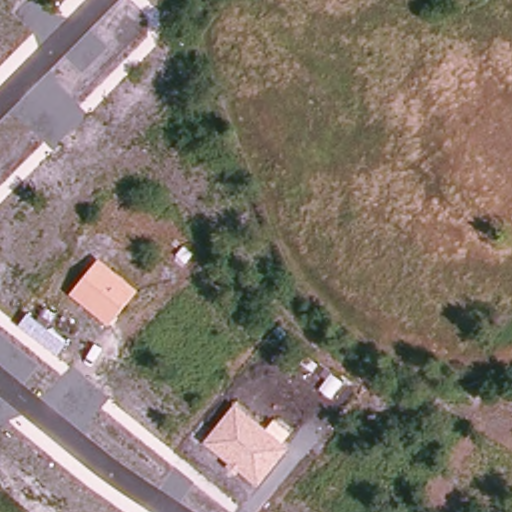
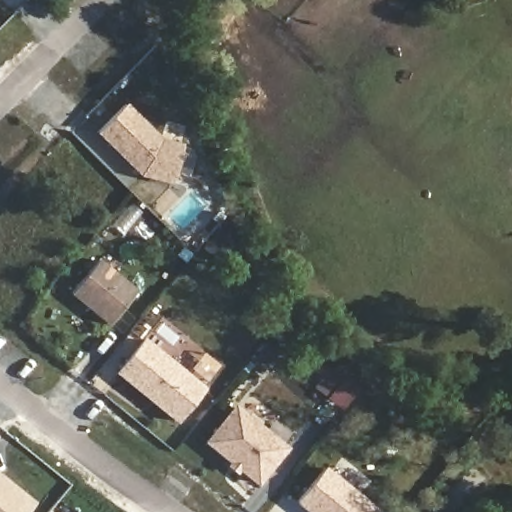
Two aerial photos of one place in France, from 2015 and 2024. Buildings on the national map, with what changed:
new [(120,106),(156,141),(177,148),(166,185),(135,178),(93,134),(120,106)]
unchanged [(109,326),(70,295),(99,259),(138,291),(109,326)]
new [(143,341),(202,389),(176,422),(156,406),(159,403),(135,384),(133,387),(116,373),(143,341)]
unchanged [(258,487),(204,443),(235,404),(290,449),(258,487)]
new [(322,469),(376,512),(308,512),(295,502),(322,469)]
new [(8,486),(33,505),(27,512),(0,512),(0,485),(5,490),(8,486)]

